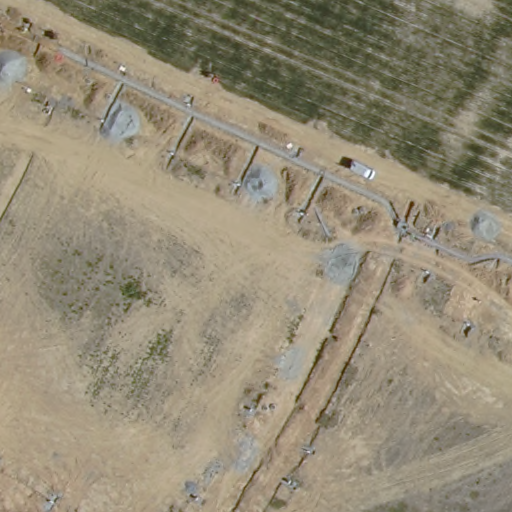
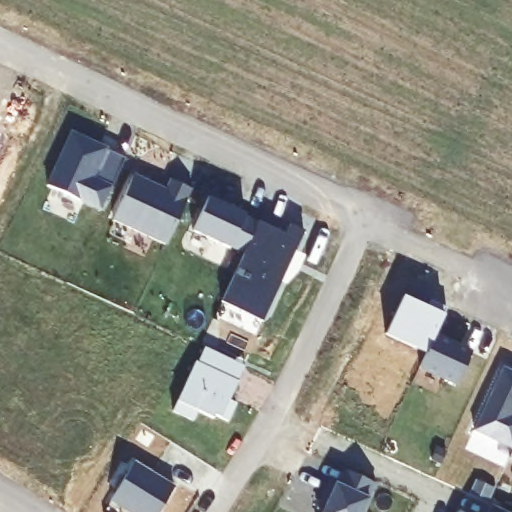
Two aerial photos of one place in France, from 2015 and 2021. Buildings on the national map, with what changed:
new [(124,156),(99,210),(48,184),(71,134),(124,156)]
new [(135,175),(167,189),(172,179),(193,189),(167,245),(114,220),(135,175)]
new [(210,196),(246,214),(246,215),(259,220),(245,253),(231,246),(231,247),(194,230),(210,196)]
new [(435,336),(472,353),(457,385),(420,368),(435,336)]
new [(200,363),(207,347),(220,353),(247,366),(240,381),(231,400),(238,404),(230,421),(217,415),(215,418),(200,411),(195,420),(175,411),(198,362),(200,363)]
new [(501,367),(512,372),(512,447),(512,448),(472,430),(501,367)]
new [(174,490),(161,512),(126,512),(111,502),(134,465),(174,490)]
new [(318,508),(331,481),(339,485),(346,470),(376,483),(363,512),(323,512),(324,511),(318,508)]
new [(508,512),(488,512),(492,504),(508,512)]
new [(458,512),(459,510),(462,512),(458,512)]

